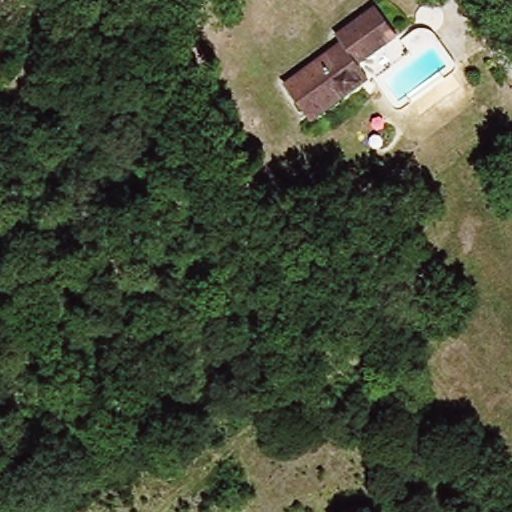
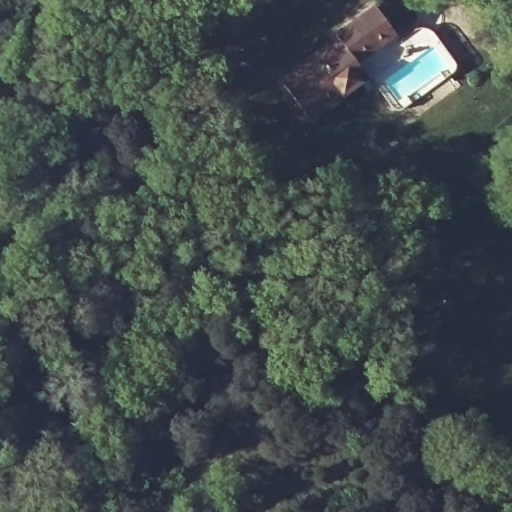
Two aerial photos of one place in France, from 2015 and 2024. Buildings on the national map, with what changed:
unchanged [(313,115),(291,85),(344,46),(340,40),(372,16),(391,40),(351,71),(358,81),(313,115)]

